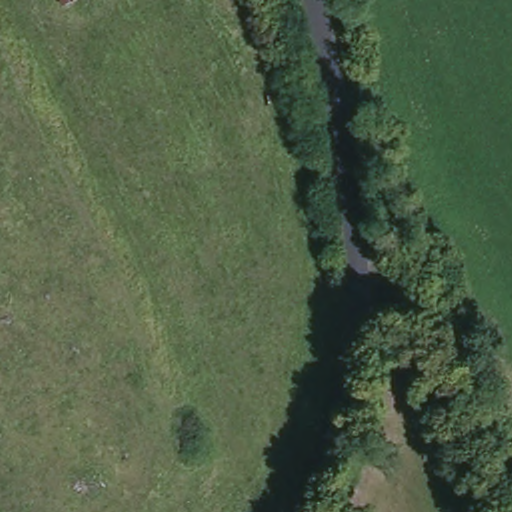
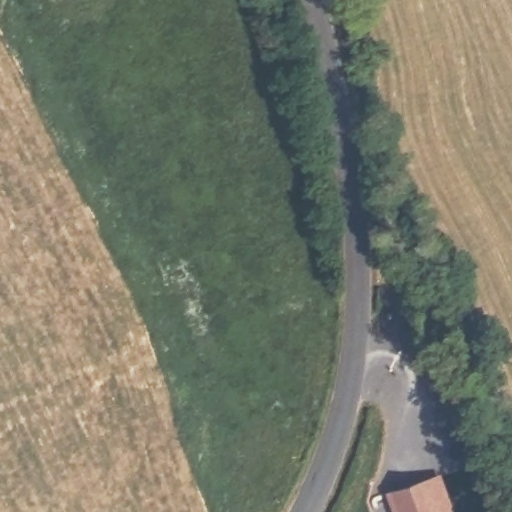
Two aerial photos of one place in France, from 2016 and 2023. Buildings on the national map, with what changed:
demolished [(65,0),(79,0),(68,6),(65,0)]
new [(441,477),(452,512),(392,512),(386,496),(441,477)]

